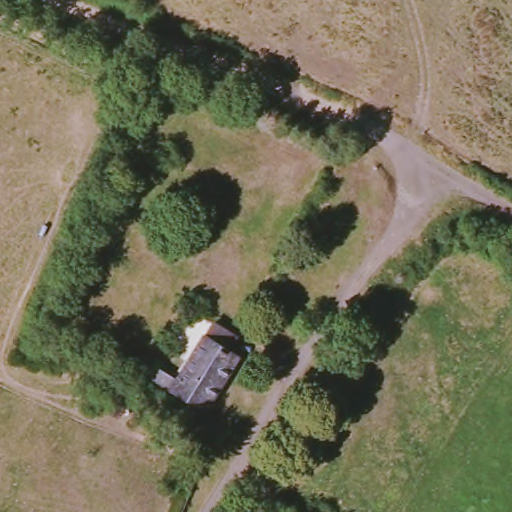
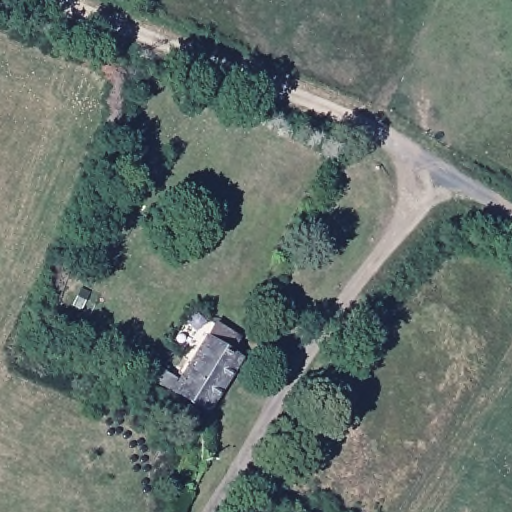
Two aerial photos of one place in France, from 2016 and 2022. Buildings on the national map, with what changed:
unchanged [(208,412),(151,383),(156,371),(181,383),(212,327),(234,338),(227,353),(238,360),(208,412)]

